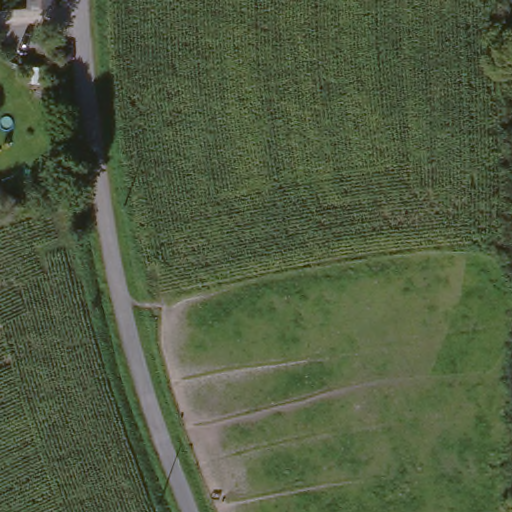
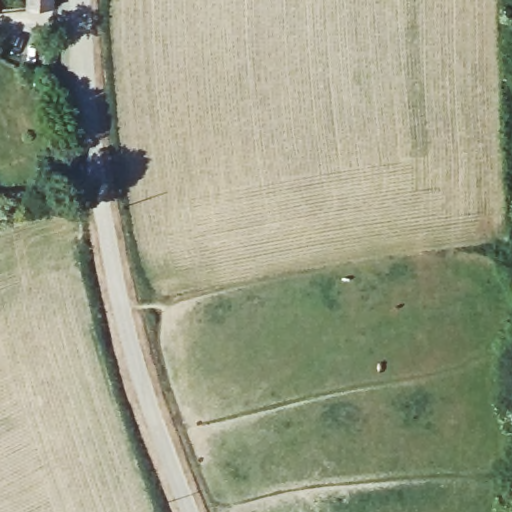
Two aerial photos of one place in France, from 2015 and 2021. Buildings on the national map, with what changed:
unchanged [(23,0),(49,0),(49,8),(23,9),(23,0)]

